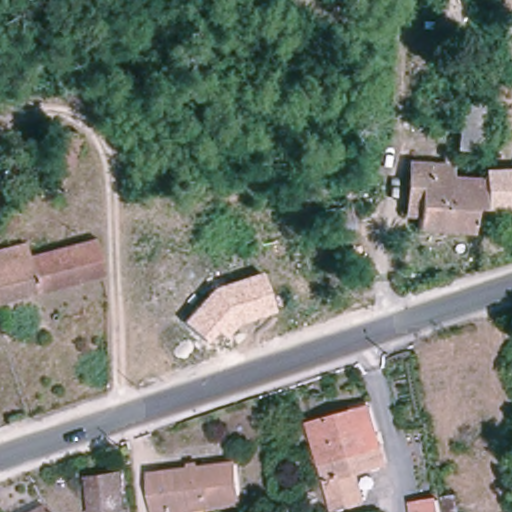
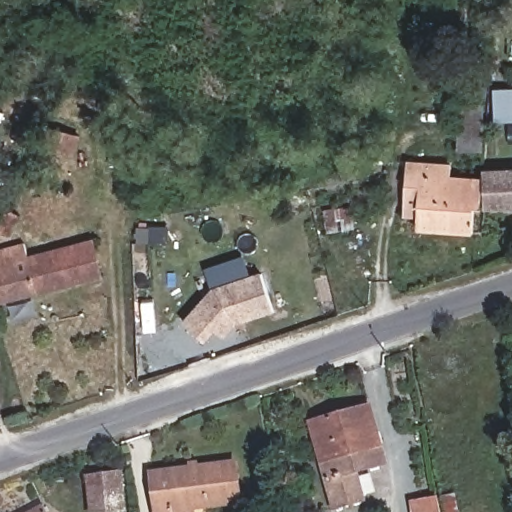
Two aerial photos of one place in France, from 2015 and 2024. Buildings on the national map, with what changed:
new [(512,91),(512,121),(496,121),(495,92),(512,91)]
unchanged [(483,104),(481,153),(457,151),(458,103),(483,104)]
unchanged [(35,166),(44,127),(80,136),(70,175),(35,166)]
unchanged [(485,150),(512,152),(512,208),(482,207),(485,150)]
unchanged [(405,187),(406,174),(474,179),(471,214),(423,213),(403,212),(405,187)]
unchanged [(19,214),(8,239),(0,234),(0,225),(7,209),(19,214)]
unchanged [(13,241),(19,261),(76,246),(86,279),(0,304),(0,245),(13,241)]
unchanged [(236,325),(227,337),(217,330),(204,342),(180,321),(211,290),(263,272),(275,310),(236,325)]
unchanged [(374,409),(386,467),(357,472),(365,499),(333,507),(314,423),(374,409)]
unchanged [(236,460),(241,497),(195,504),(195,512),(158,512),(154,471),(236,460)]
unchanged [(113,512),(91,512),(85,473),(119,470),(124,511),(113,512)]
unchanged [(442,512),(413,512),(411,501),(439,496),(442,512)]
unchanged [(48,512),(25,512),(43,502),(48,512)]

